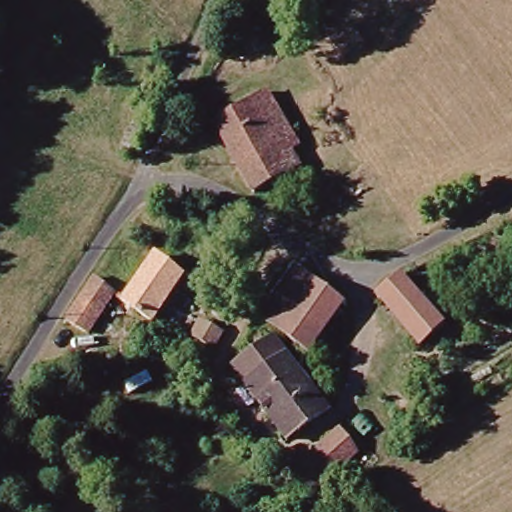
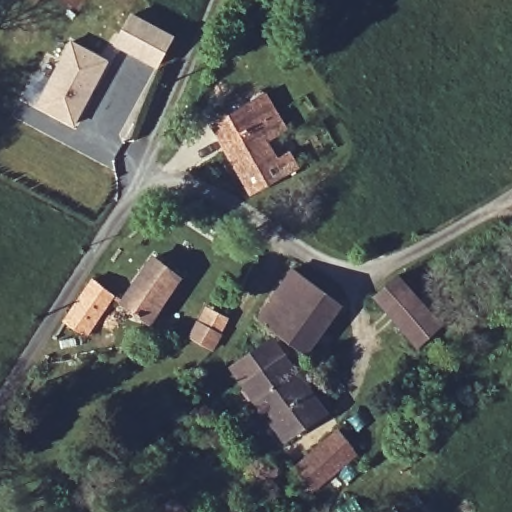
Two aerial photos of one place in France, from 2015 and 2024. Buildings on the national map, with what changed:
new [(114,44),(131,13),(174,37),(157,69),(114,44)]
new [(50,79),(69,41),(109,61),(73,127),(25,98),(37,73),(50,79)]
unchanged [(214,124),(260,98),(268,95),(299,150),(292,154),(301,170),(255,194),(214,124)]
unchanged [(125,297),(155,255),(183,276),(152,318),(125,297)]
unchanged [(263,312),(299,267),(345,303),(310,348),(263,312)]
unchanged [(100,273),(118,288),(89,329),(71,315),(100,273)]
unchanged [(447,322),(423,344),(380,296),(404,274),(447,322)]
unchanged [(216,344),(194,333),(202,319),(224,329),(216,344)]
unchanged [(288,437),(236,366),(276,337),(327,408),(288,437)]
unchanged [(346,429),(361,451),(313,486),(298,466),(346,429)]

